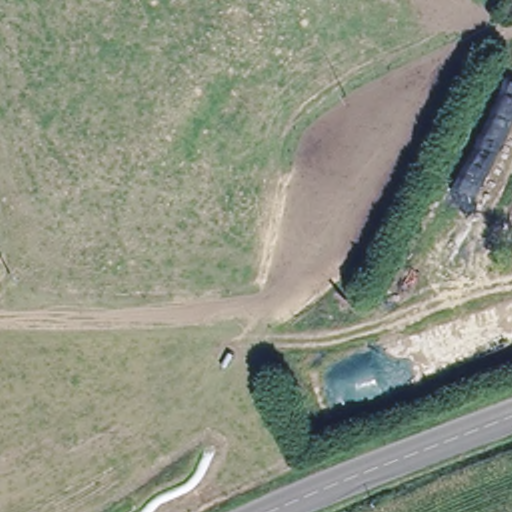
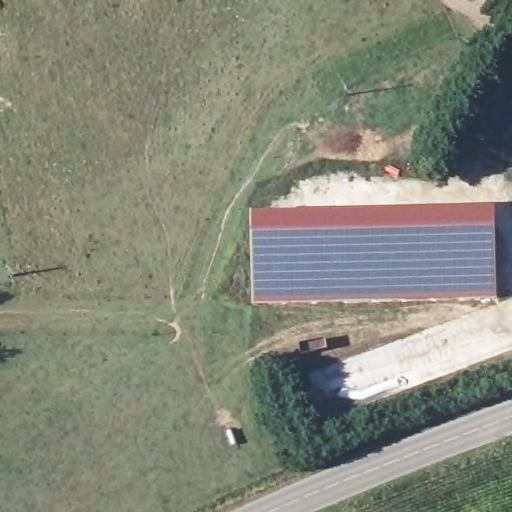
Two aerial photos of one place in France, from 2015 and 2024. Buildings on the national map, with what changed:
new [(496,299),(251,305),(250,215),(495,208),(496,299)]

